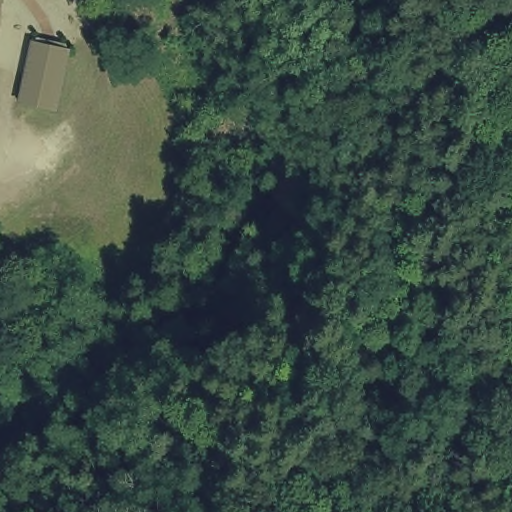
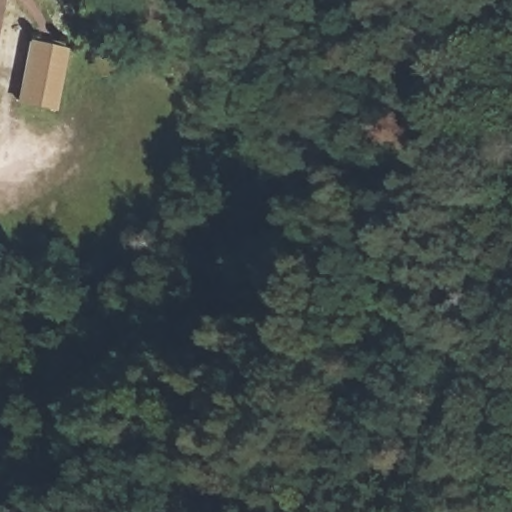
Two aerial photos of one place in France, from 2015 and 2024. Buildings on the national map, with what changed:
unchanged [(52,109),(16,101),(29,44),(64,51),(52,109)]

